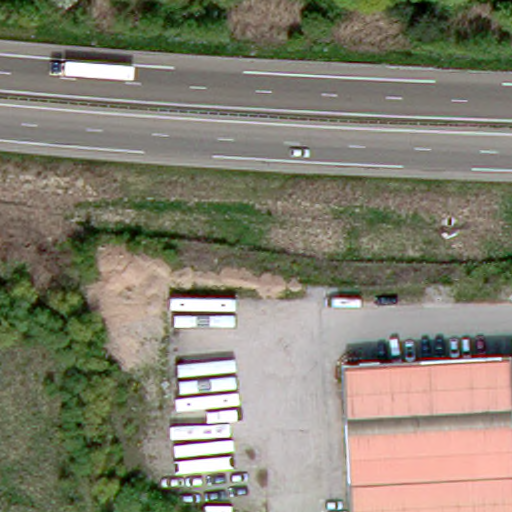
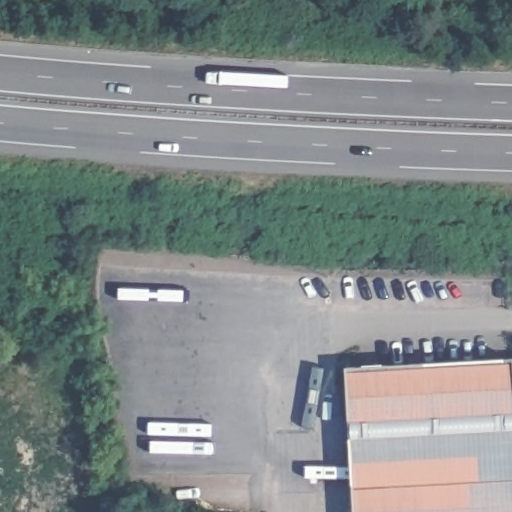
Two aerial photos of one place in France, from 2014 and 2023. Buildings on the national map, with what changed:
unchanged [(361,490),(355,369),(512,360),(512,512),(362,512),(361,490)]

